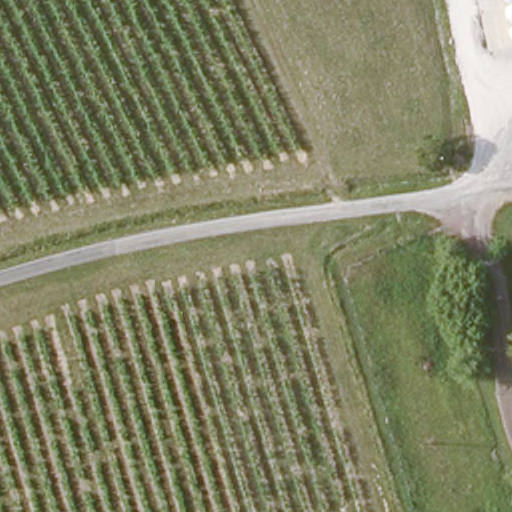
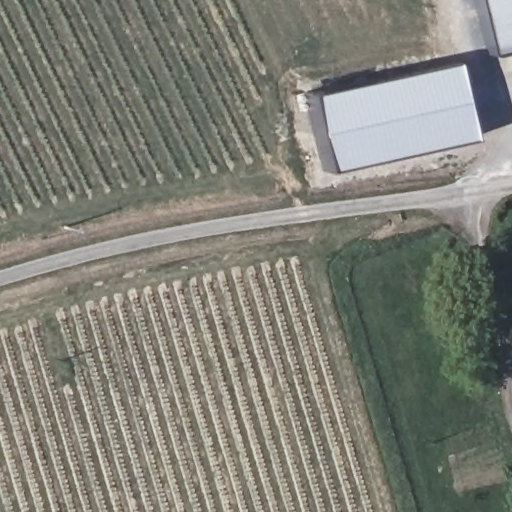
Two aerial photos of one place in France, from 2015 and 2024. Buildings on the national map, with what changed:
unchanged [(486,0),(512,0),(512,43),(497,46),(486,0)]
new [(451,60),(468,136),(324,169),(306,93),(451,60)]

